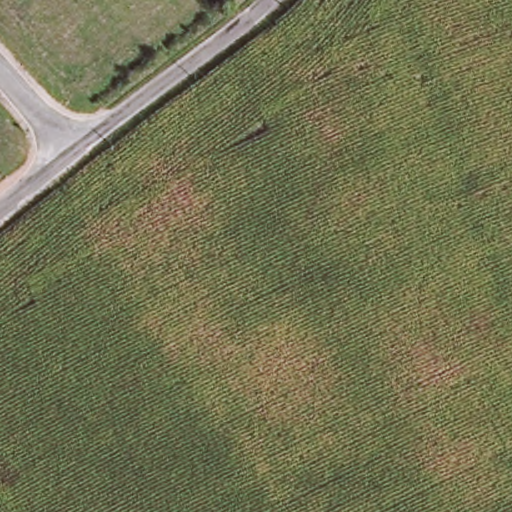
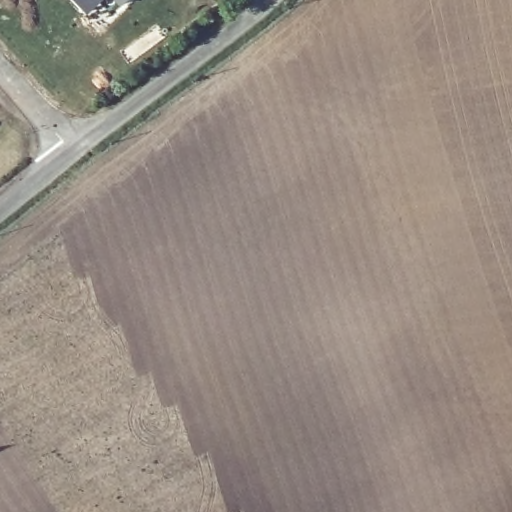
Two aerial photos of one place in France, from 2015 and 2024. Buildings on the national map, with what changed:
new [(87,15),(73,0),(103,0),(87,15)]
new [(120,7),(112,0),(129,0),(120,7)]

